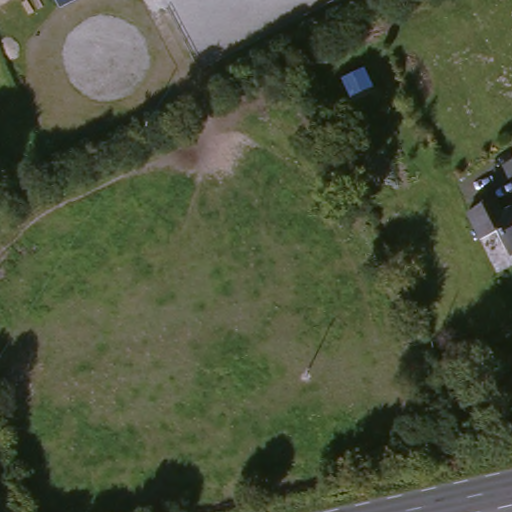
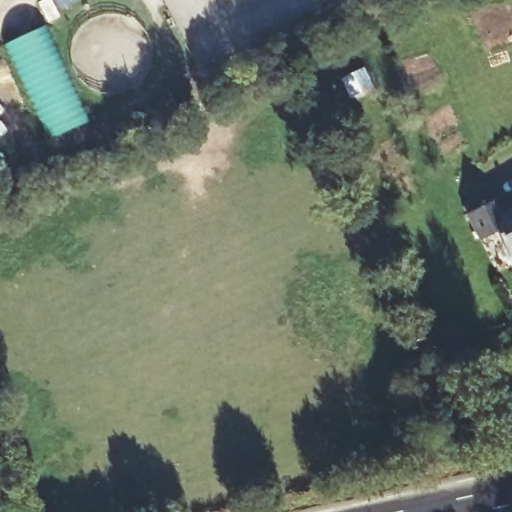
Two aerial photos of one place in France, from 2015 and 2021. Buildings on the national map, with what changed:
new [(13,40),(39,28),(81,124),(56,136),(13,40)]
unchanged [(495,240),(475,249),(462,220),(491,205),(500,224),(512,218),(512,254),(504,259),(495,240)]

